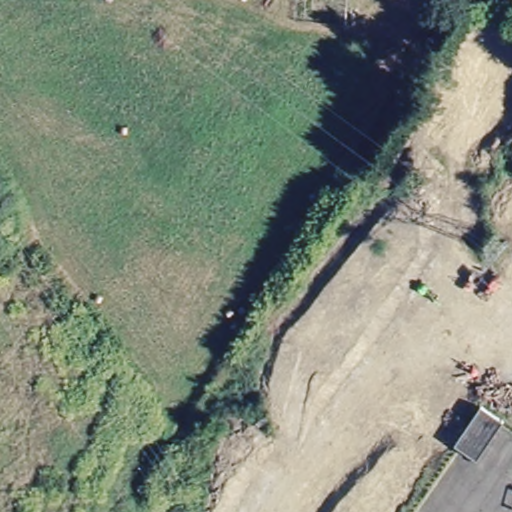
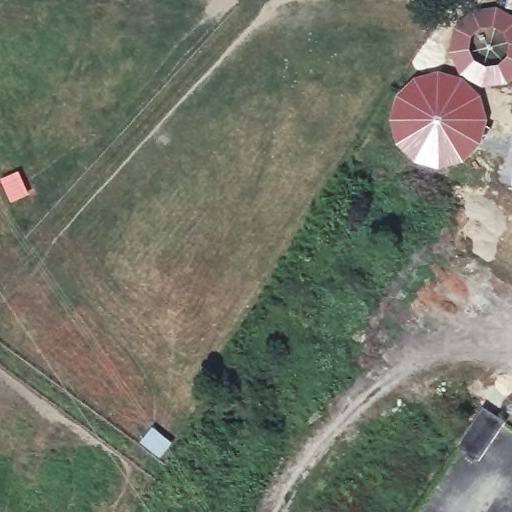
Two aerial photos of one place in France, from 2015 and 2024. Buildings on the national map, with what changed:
new [(466,80),(481,95),(488,121),(481,144),(464,162),(440,170),(415,163),(397,145),(390,120),(397,96),(414,78),(438,72),(461,78),(450,53),(455,28),(471,10),(497,7),(512,15),(512,81),(508,85),(483,88),(466,80)]
unchanged [(482,462),(461,445),(489,410),(490,409),(511,426),(482,462)]

